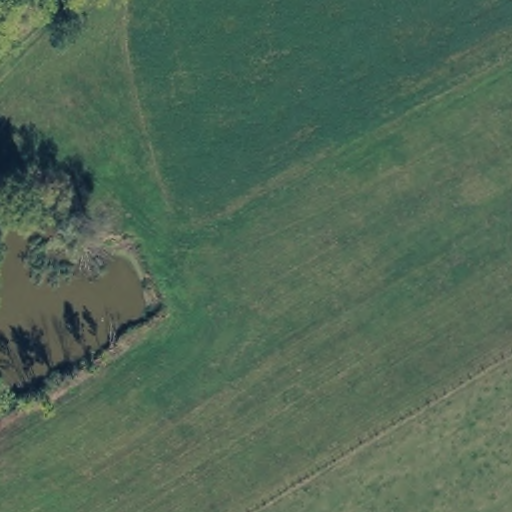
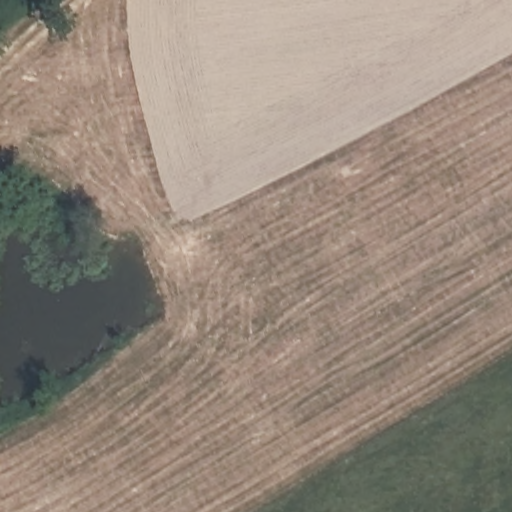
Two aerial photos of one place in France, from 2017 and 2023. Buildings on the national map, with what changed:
[]

